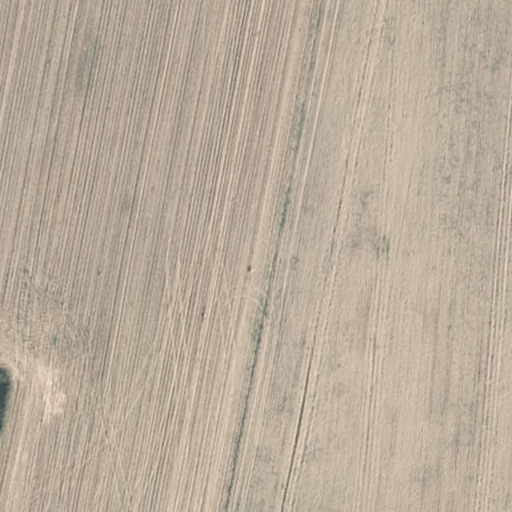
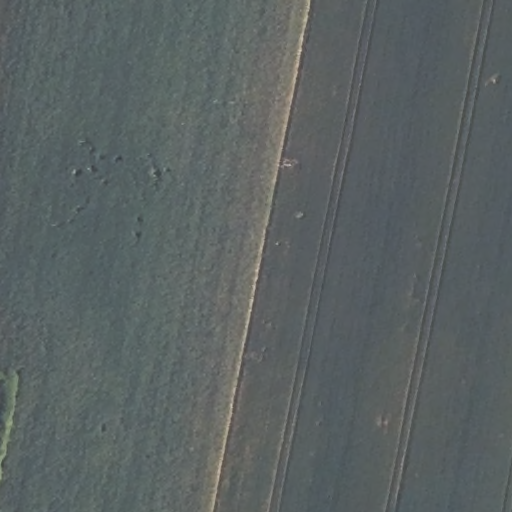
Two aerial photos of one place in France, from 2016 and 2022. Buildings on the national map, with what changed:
[]

